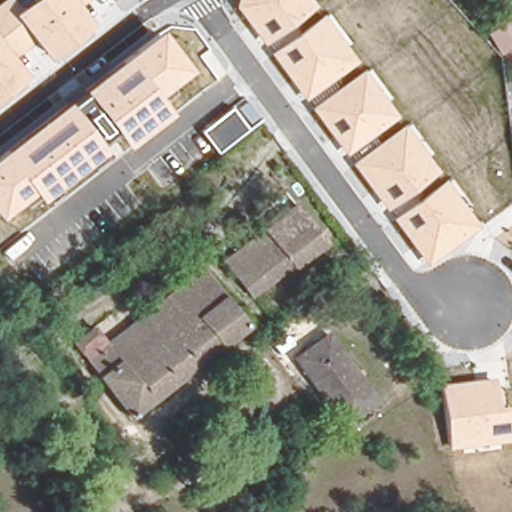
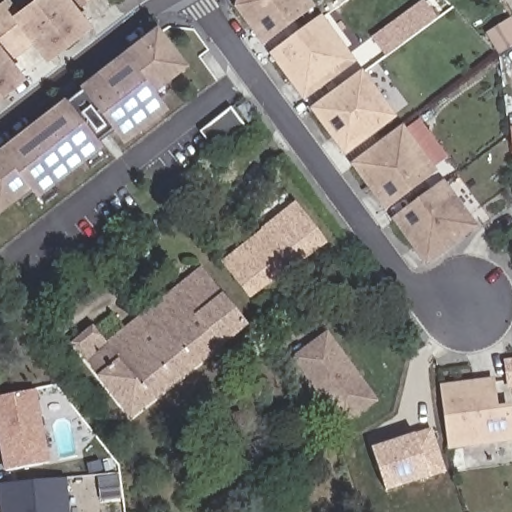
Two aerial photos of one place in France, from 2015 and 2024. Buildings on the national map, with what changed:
unchanged [(14,0),(20,7),(30,0),(88,0),(80,5),(94,23),(49,58),(35,41),(14,59),(28,75),(0,98),(0,2),(3,0),(14,0)]
unchanged [(235,6),(237,0),(313,0),(317,6),(265,44),(235,6)]
new [(372,39),(423,0),(425,0),(439,19),(386,59),(372,39)]
unchanged [(305,99),(270,53),(321,14),(356,61),(305,99)]
unchanged [(499,61),(486,41),(512,25),(512,26),(512,53),(499,61)]
unchanged [(170,113),(125,146),(114,131),(100,142),(105,150),(40,201),(32,192),(0,215),(0,151),(65,100),(69,104),(85,93),(81,89),(159,28),(190,69),(156,94),(170,113)]
unchanged [(346,155),(311,108),(364,69),(398,116),(346,155)]
unchanged [(218,153),(201,131),(232,106),(248,129),(218,153)]
unchanged [(386,210),(351,163),(404,124),(439,171),(386,210)]
unchanged [(480,226),(427,264),(393,218),(445,179),(480,226)]
unchanged [(254,306),(225,269),(297,214),(326,251),(254,306)]
unchanged [(248,327),(130,419),(74,346),(94,330),(106,344),(155,307),(146,294),(185,264),(194,275),(203,269),(248,327)]
unchanged [(296,359),(327,337),(376,402),(345,424),(296,359)]
unchanged [(499,406),(512,404),(512,441),(450,449),(441,384),(495,377),(499,406)]
new [(11,471),(0,418),(0,397),(40,389),(53,463),(11,471)]
unchanged [(249,430),(236,436),(229,418),(242,413),(249,430)]
new [(433,427),(447,473),(387,493),(372,448),(433,427)]
new [(0,484),(67,479),(70,512),(1,512),(0,501),(0,484)]

